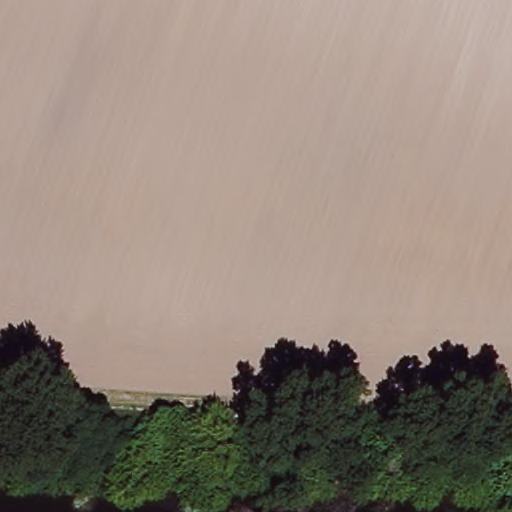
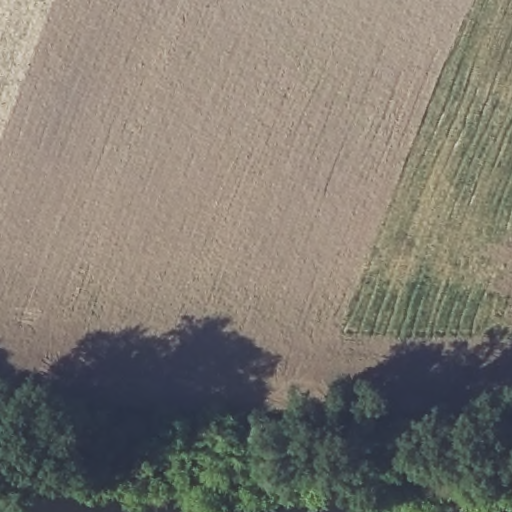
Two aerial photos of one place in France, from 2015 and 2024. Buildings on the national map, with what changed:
[]

